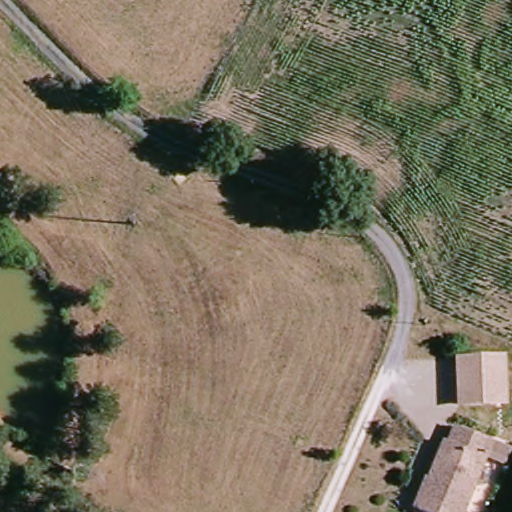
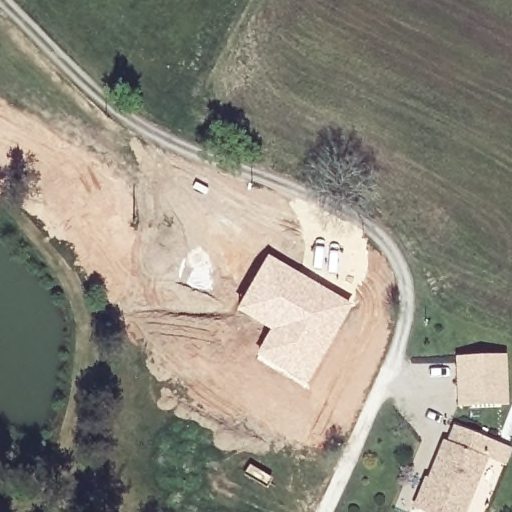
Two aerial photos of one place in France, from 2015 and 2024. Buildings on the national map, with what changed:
new [(267,255),(352,302),(305,386),(255,357),(269,330),(235,310),(267,255)]
unchanged [(508,354),(510,406),(458,407),(457,357),(508,354)]
unchanged [(444,448),(450,431),(489,446),(465,512),(414,512),(419,499),(424,501),(430,486),(424,484),(437,446),(444,448)]

